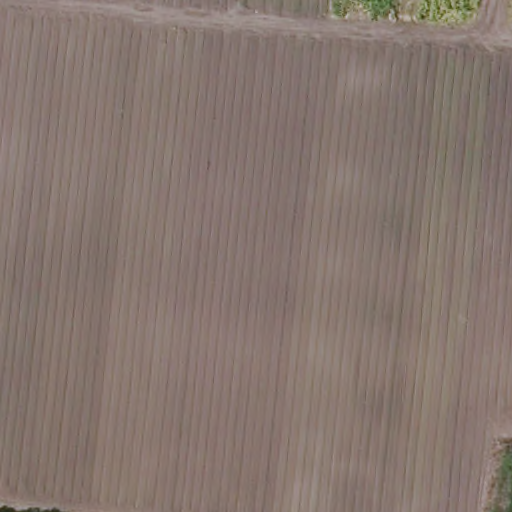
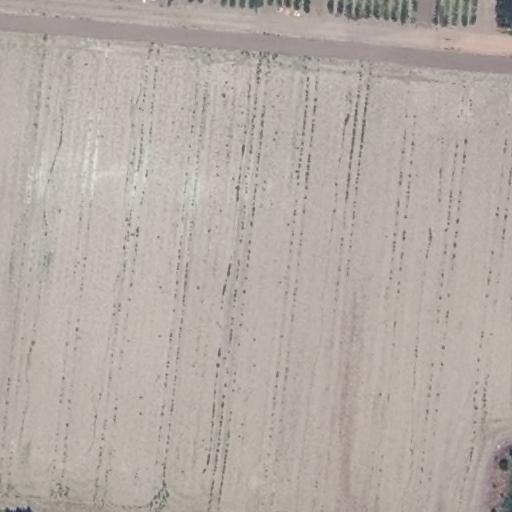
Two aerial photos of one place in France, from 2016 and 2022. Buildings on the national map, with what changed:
[]

